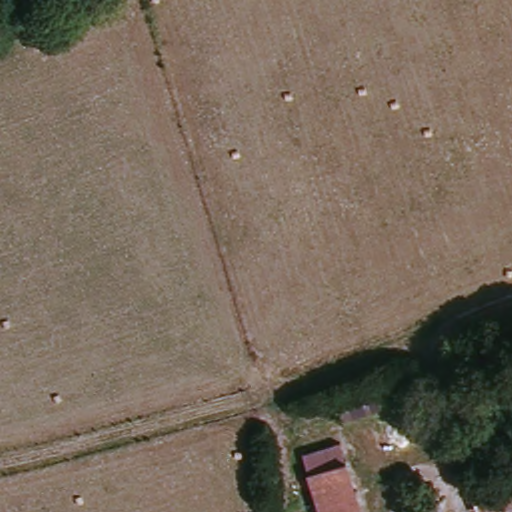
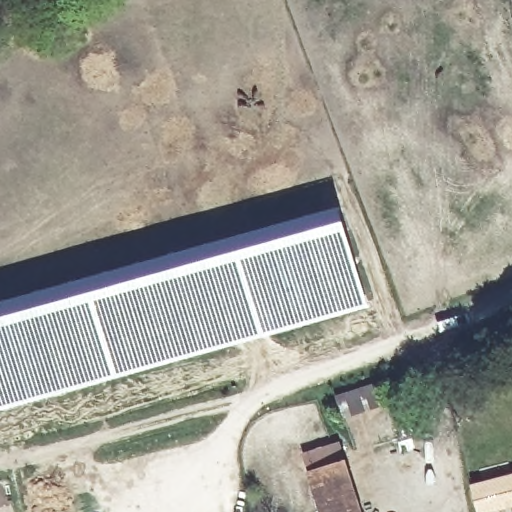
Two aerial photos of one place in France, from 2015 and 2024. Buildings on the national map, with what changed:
new [(317,214),(318,221),(342,216),(368,306),(236,341),(21,402),(0,409),(0,302),(317,214)]
new [(377,381),(385,403),(343,419),(335,395),(377,381)]
unchanged [(302,458),(338,444),(347,460),(361,512),(319,512),(307,473),(302,458)]
unchanged [(512,476),(512,512),(471,512),(466,487),(512,476)]
demolished [(440,507),(440,512),(410,512),(410,508),(440,507)]

